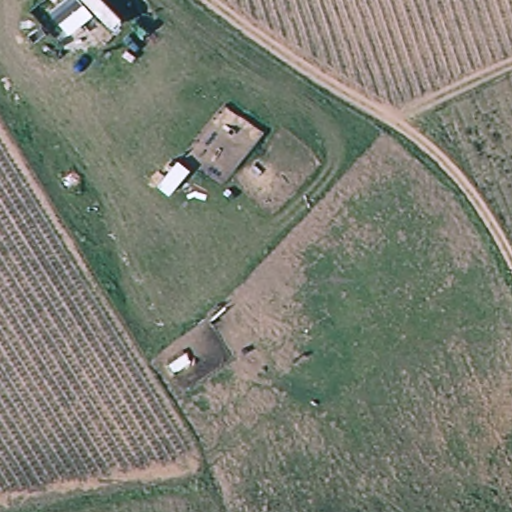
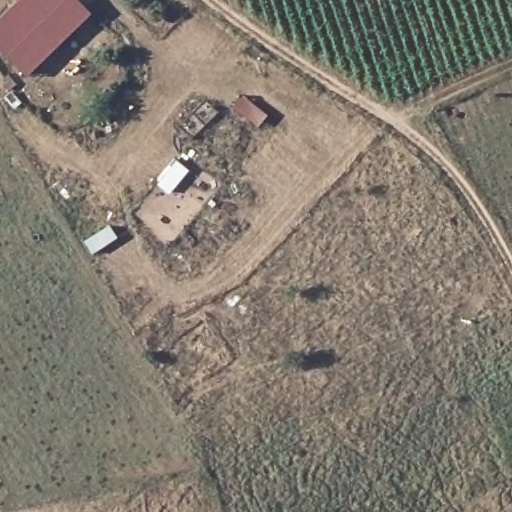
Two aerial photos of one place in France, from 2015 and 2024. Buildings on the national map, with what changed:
new [(29,75),(0,46),(0,20),(21,0),(76,0),(90,14),(29,75)]

